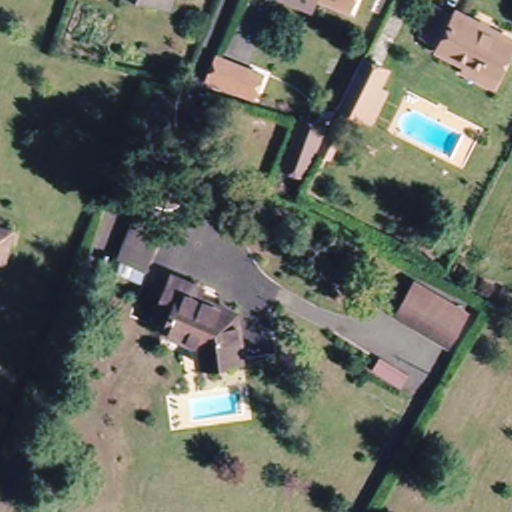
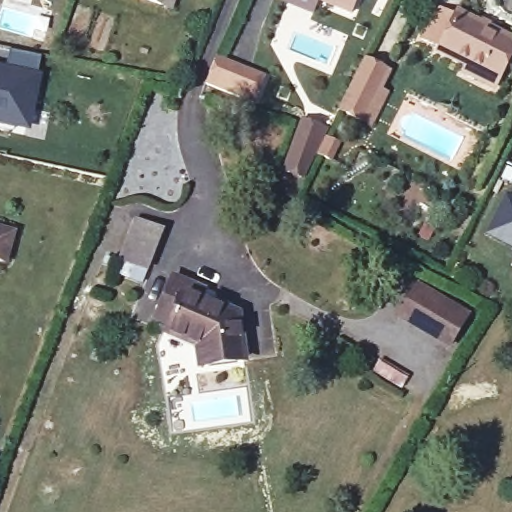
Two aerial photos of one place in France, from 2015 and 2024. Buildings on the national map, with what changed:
unchanged [(171,8),(162,5),(148,0),(174,0),(171,8)]
unchanged [(351,9),(330,0),(354,0),(351,9)]
new [(428,6),(418,0),(431,0),(428,6)]
unchanged [(463,68),(466,62),(437,48),(439,42),(422,33),(437,4),(454,13),(457,7),(512,35),(512,47),(494,84),(463,68)]
new [(0,123),(0,67),(7,69),(10,50),(42,56),(38,79),(36,89),(38,90),(35,109),(31,109),(27,128),(13,126),(0,123)]
unchanged [(260,73),(250,98),(201,78),(211,53),(260,73)]
unchanged [(370,121),(364,118),(338,105),(359,64),(363,54),(390,68),(381,85),(387,88),(370,121)]
unchanged [(330,161),(317,154),(326,137),(339,144),(330,161)]
new [(512,248),(484,233),(505,192),(512,195),(512,248)]
unchanged [(145,269),(120,260),(135,220),(160,230),(145,269)]
unchanged [(9,233),(0,264),(0,263),(0,230),(9,233)]
unchanged [(204,299),(242,314),(249,360),(205,366),(201,346),(171,333),(175,325),(159,319),(176,277),(208,290),(204,299)]
unchanged [(449,342),(396,314),(411,286),(464,314),(449,342)]

